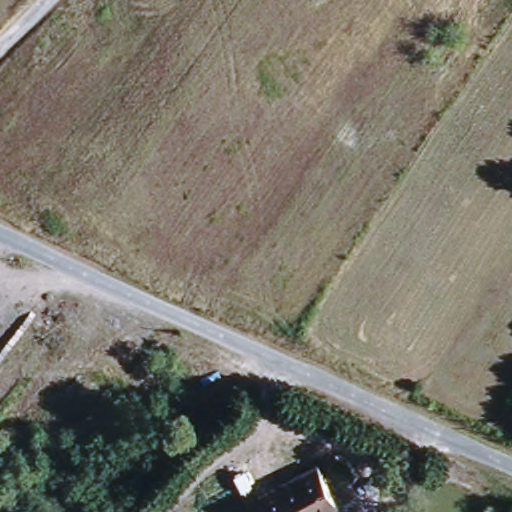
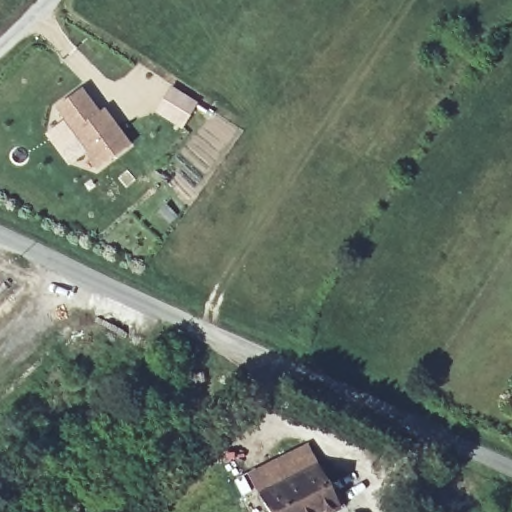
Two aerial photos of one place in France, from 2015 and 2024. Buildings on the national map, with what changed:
new [(61,123),(63,121),(55,109),(82,89),(100,112),(104,108),(131,144),(94,168),(61,123)]
unchanged [(325,512),(263,512),(254,495),(313,466),(334,507),(325,512)]

